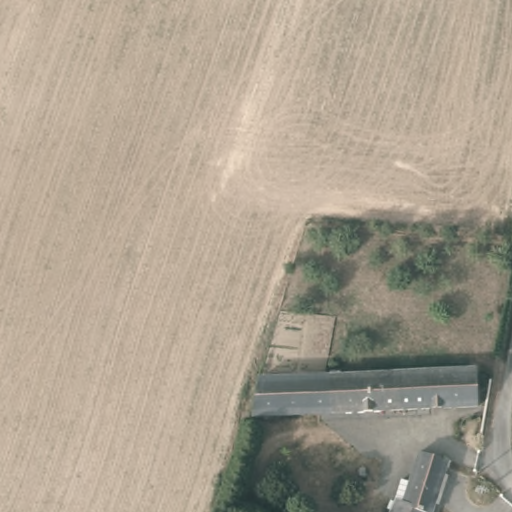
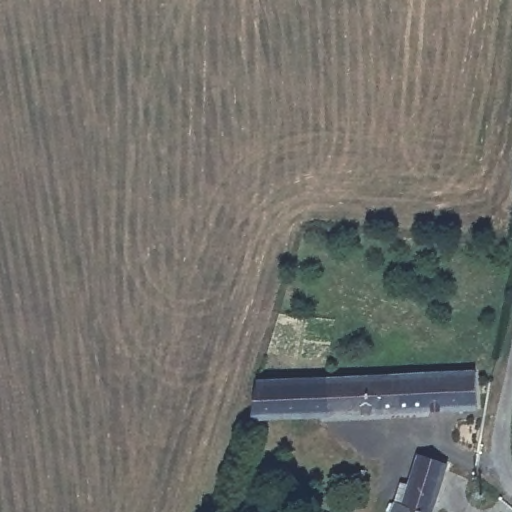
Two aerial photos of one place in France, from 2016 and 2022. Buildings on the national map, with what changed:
unchanged [(478,370),(479,405),(256,413),(262,377),(478,370)]
unchanged [(406,508),(422,457),(448,466),(433,512),(391,512),(393,505),(406,508)]

